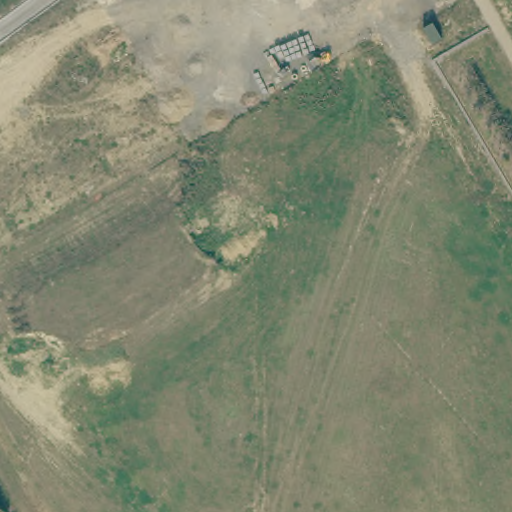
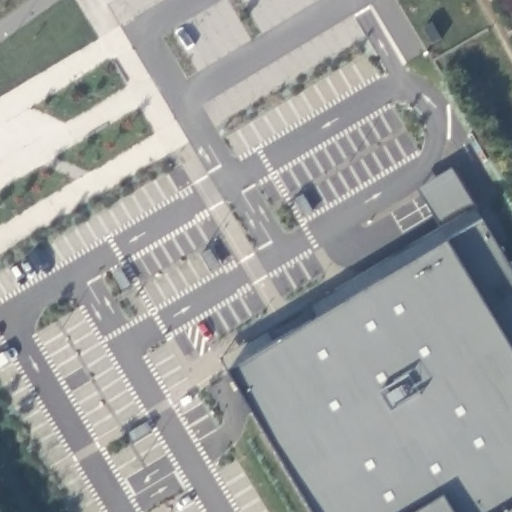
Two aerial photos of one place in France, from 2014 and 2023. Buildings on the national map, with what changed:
new [(451,242),(418,190),(454,170),(512,267),(512,512),(313,512),(230,373),(451,242)]

